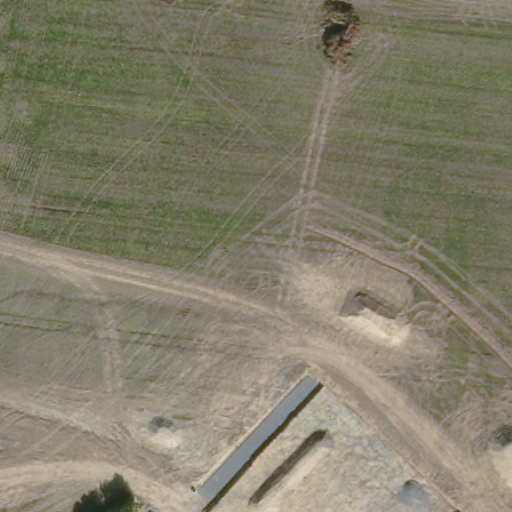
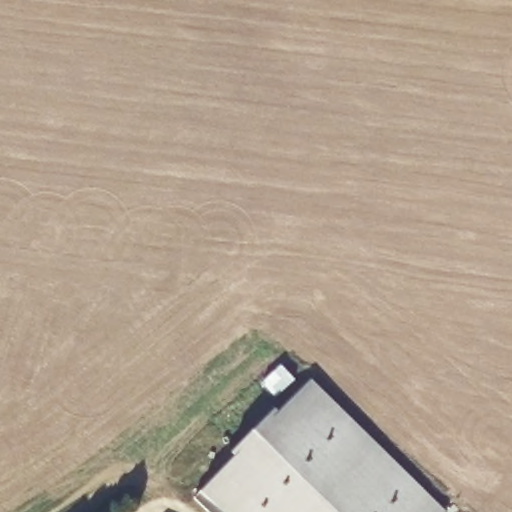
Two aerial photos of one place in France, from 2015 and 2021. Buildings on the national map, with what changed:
new [(447,511),(447,512),(224,512),(202,490),(235,457),(231,453),(275,408),(278,412),(311,379),(447,511)]

